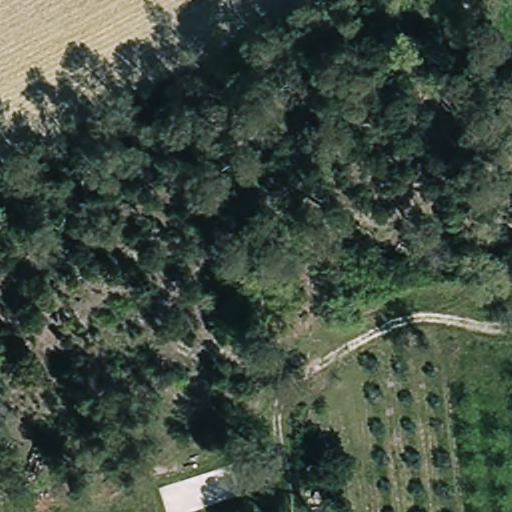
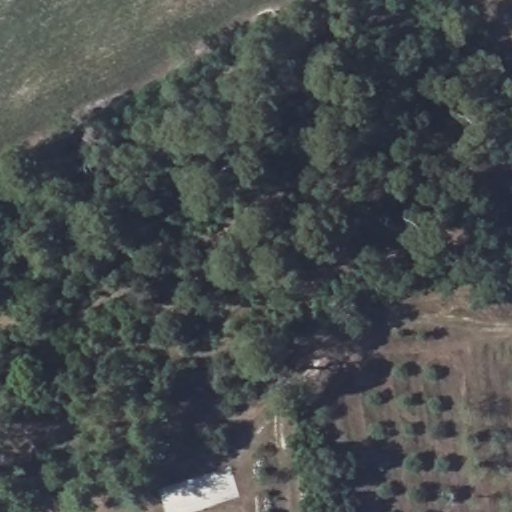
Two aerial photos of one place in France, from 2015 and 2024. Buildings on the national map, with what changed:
[]

